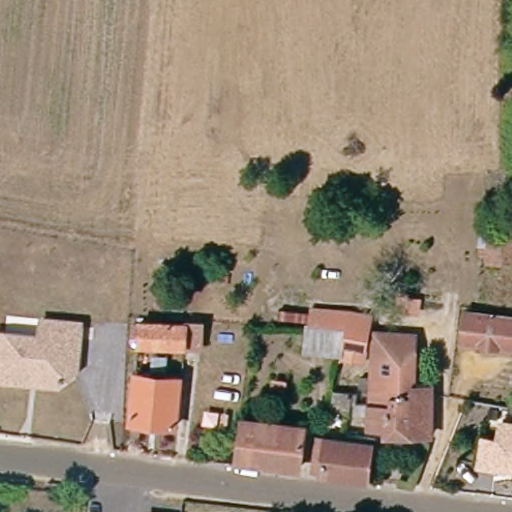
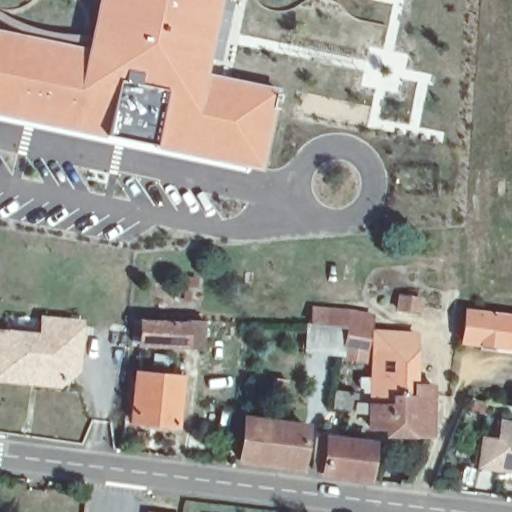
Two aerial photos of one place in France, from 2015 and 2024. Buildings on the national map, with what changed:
new [(275,86),(257,161),(0,108),(0,25),(105,48),(116,0),(216,0),(202,70),(275,86)]
unchanged [(418,300),(416,313),(400,310),(402,297),(418,300)]
unchanged [(306,345),(308,325),(311,326),(311,310),(347,313),(373,318),(368,351),(366,351),(364,363),(341,359),(342,347),(306,345)]
unchanged [(512,349),(462,343),(466,312),(512,317),(512,349)]
unchanged [(63,384),(29,380),(0,377),(0,330),(39,334),(41,317),(80,321),(78,339),(74,375),(63,384)]
unchanged [(203,322),(202,349),(138,346),(140,321),(189,324),(189,321),(203,322)]
unchanged [(414,396),(390,395),(390,406),(369,406),(370,393),(362,393),(362,389),(359,389),(359,379),(371,379),(375,333),(415,336),(415,386),(414,396)]
unchanged [(181,378),(176,427),(131,422),(136,374),(181,378)]
unchanged [(280,385),(291,387),(289,402),(278,400),(280,385)]
unchanged [(386,436),(386,429),(366,428),(367,415),(354,413),(355,406),(369,406),(390,406),(390,395),(414,396),(415,386),(433,386),(433,393),(431,437),(386,436)]
unchanged [(349,411),(332,408),(334,392),(356,394),(355,406),(350,405),(349,411)]
unchanged [(244,466),(249,424),(310,432),(305,474),(244,466)]
unchanged [(512,426),(512,471),(490,468),(475,466),(480,440),(494,442),(498,424),(512,426)]
unchanged [(328,479),(329,476),(315,474),(320,442),(377,451),(372,485),(328,479)]

